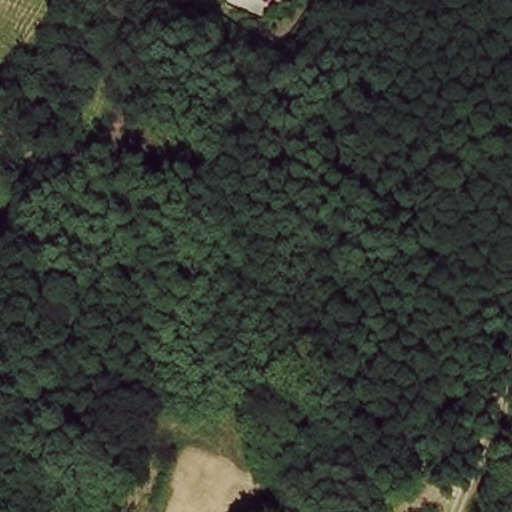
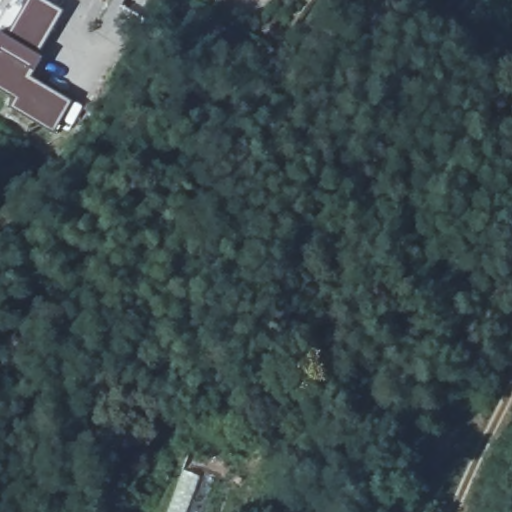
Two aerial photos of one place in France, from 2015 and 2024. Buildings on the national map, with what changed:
new [(25,74),(71,102),(52,135),(6,109),(12,99),(0,92),(0,34),(4,36),(22,0),(41,0),(60,11),(25,74)]

